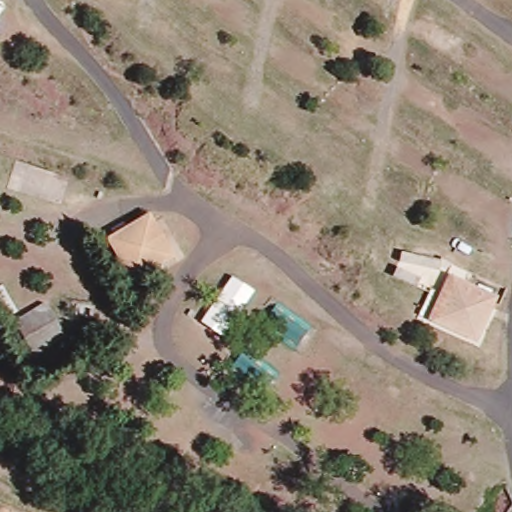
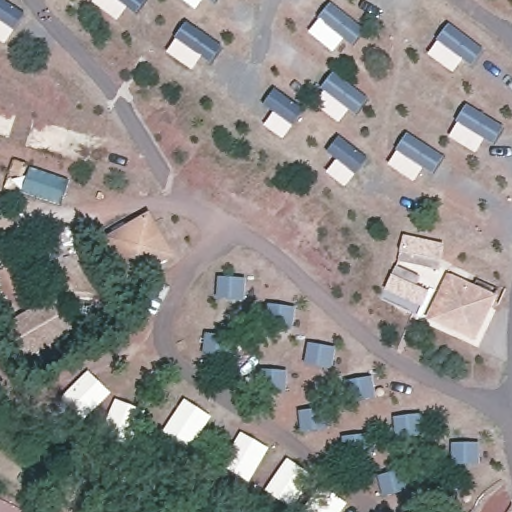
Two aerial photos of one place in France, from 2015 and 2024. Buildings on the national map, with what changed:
unchanged [(133,278),(108,236),(148,211),(173,253),(133,278)]
unchanged [(256,295),(220,335),(198,323),(233,276),(256,295)]
unchanged [(475,347),(429,326),(447,284),(493,305),(475,347)]
unchanged [(35,353),(15,321),(44,305),(63,336),(35,353)]
unchanged [(271,308),(307,326),(299,344),(262,326),(271,308)]
unchanged [(241,353),(272,374),(262,389),(231,368),(241,353)]

